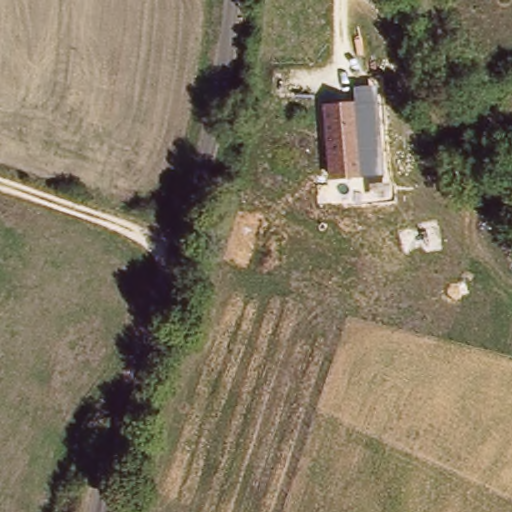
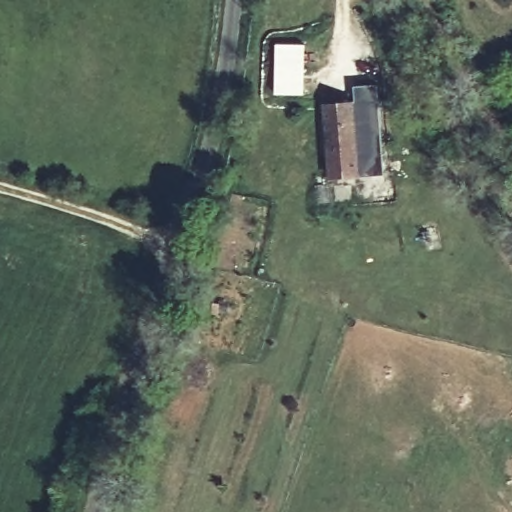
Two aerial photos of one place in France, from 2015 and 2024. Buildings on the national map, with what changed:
new [(307,46),(305,95),(277,95),(277,45),(307,46)]
unchanged [(361,101),(355,101),(353,86),(377,84),(384,175),(368,176),(361,101)]
unchanged [(325,105),(361,101),(368,176),(331,180),(325,105)]

